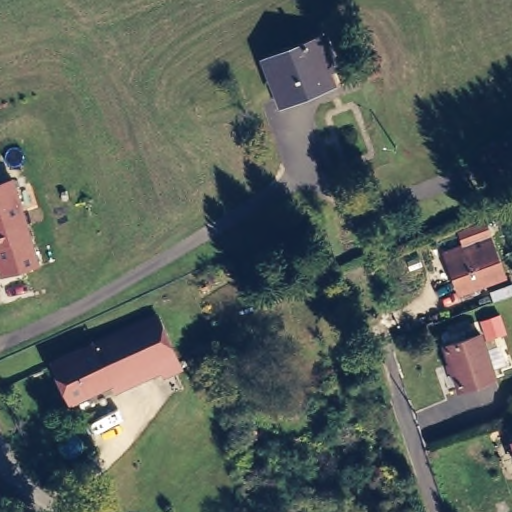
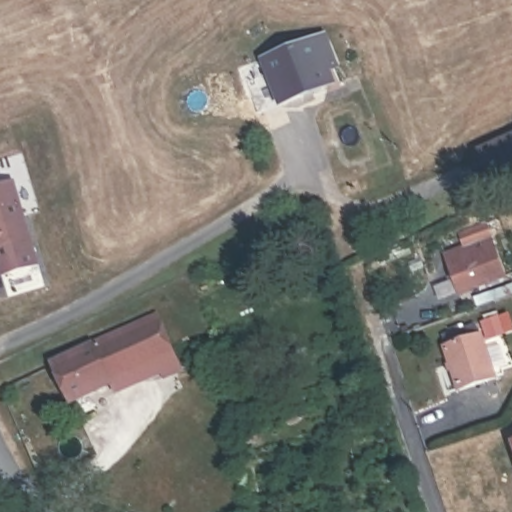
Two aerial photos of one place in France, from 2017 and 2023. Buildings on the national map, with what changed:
unchanged [(307,94),(285,102),(285,101),(275,106),(267,88),(272,86),(262,63),(321,40),(337,81),(307,94)]
unchanged [(512,134),(512,171),(493,180),(479,148),(512,134)]
unchanged [(0,185),(15,181),(41,266),(0,279),(0,185)]
unchanged [(490,232),(508,274),(465,293),(453,265),(470,257),(465,243),(490,232)]
unchanged [(66,404),(50,367),(63,360),(155,318),(180,372),(166,377),(160,362),(66,404)]
unchanged [(476,337),(492,381),(459,391),(443,348),(476,337)]

